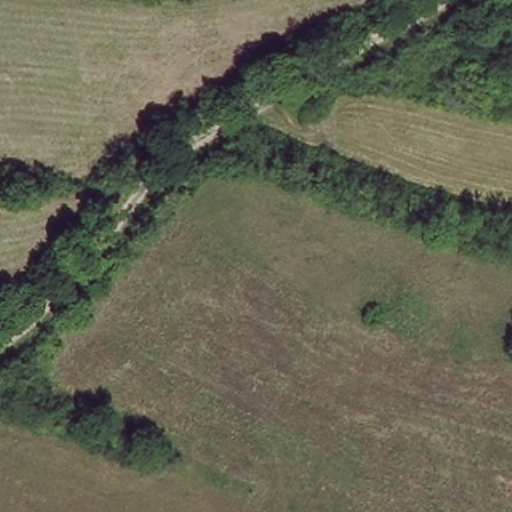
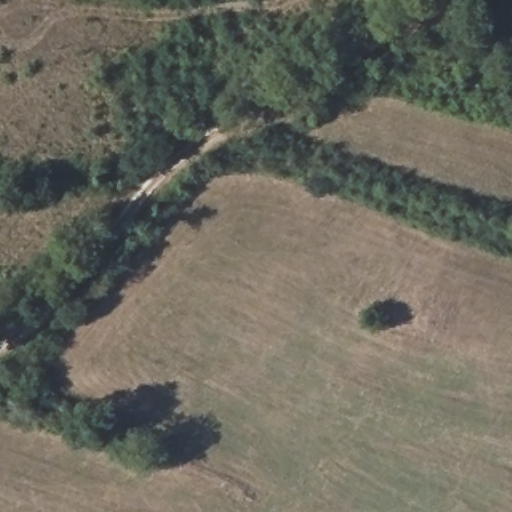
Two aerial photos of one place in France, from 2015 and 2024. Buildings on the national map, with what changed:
[]

